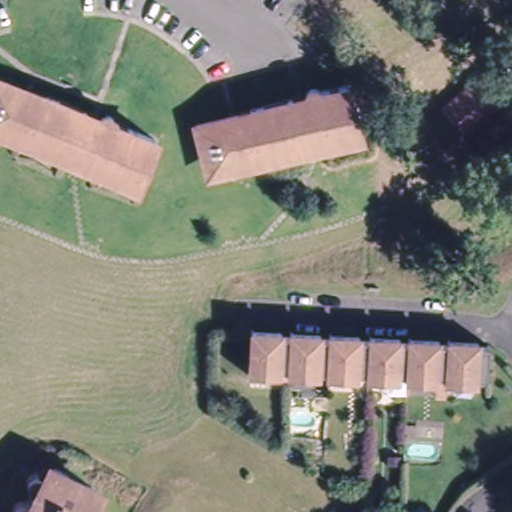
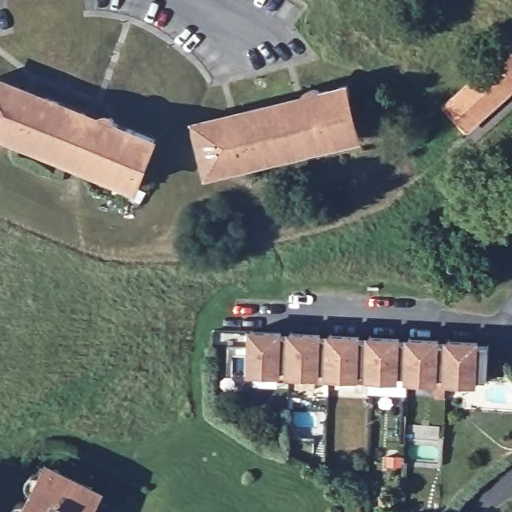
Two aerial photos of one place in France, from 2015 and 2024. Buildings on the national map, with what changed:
unchanged [(500,65),(512,77),(512,89),(462,133),(446,113),(500,65)]
unchanged [(129,185),(0,135),(0,72),(152,129),(129,185)]
unchanged [(335,83),(346,131),(309,140),(306,131),(303,114),(306,108),(307,106),(308,104),(309,101),(309,99),(309,95),(309,93),(308,90),(307,89),(335,83)]
unchanged [(288,136),(279,96),(293,91),(294,89),(295,88),(297,86),(300,86),(303,86),(305,87),(306,88),(307,89),(308,90),(309,93),(309,95),(309,99),(309,101),(308,104),(307,106),(306,108),(303,114),(306,131),(288,136)]
unchanged [(288,136),(259,144),(261,151),(228,160),(226,151),(197,158),(187,119),(218,118),(221,129),(230,128),(226,114),(239,111),(238,106),(279,96),(288,136)]
unchanged [(484,384),(243,377),(244,332),(269,332),(269,340),(284,341),(284,332),(312,333),(312,342),(325,342),(325,334),(352,334),(353,343),(366,343),(366,334),(391,335),(391,343),(405,344),(404,336),(430,336),(431,344),(448,345),(448,337),(474,337),(474,348),(483,348),(484,384)]
unchanged [(2,511),(3,509),(5,507),(7,506),(9,504),(11,504),(13,504),(16,505),(21,494),(19,492),(18,490),(17,488),(17,486),(18,483),(19,481),(20,480),(22,478),(25,478),(29,479),(33,471),(40,474),(42,469),(82,490),(80,494),(92,499),(86,512),(2,512),(2,511)]

